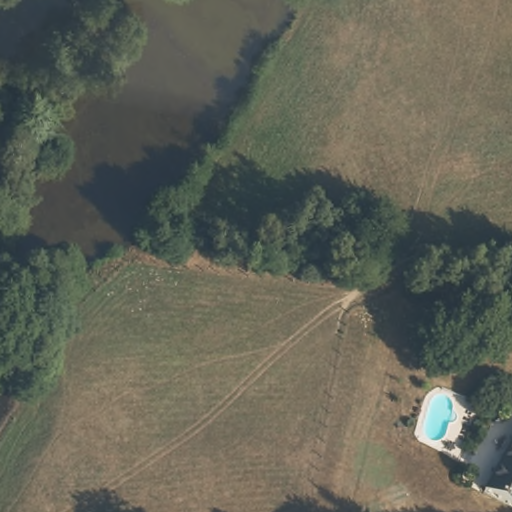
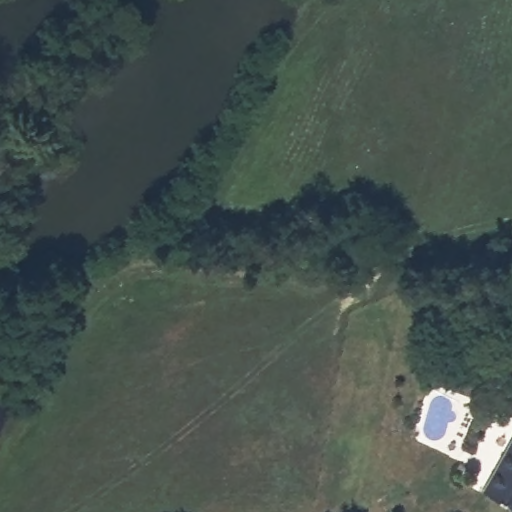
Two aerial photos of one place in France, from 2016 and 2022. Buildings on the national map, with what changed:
unchanged [(512,445),(512,502),(490,491),(512,445)]

